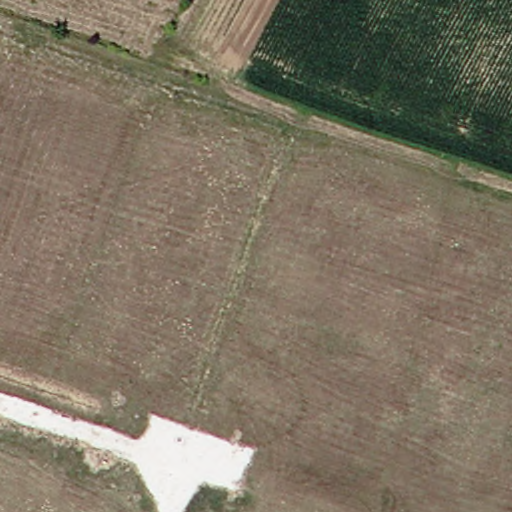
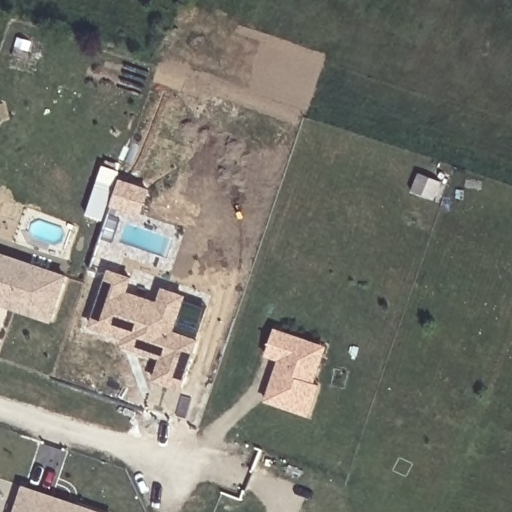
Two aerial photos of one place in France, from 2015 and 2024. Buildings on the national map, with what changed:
new [(141,216),(111,206),(105,220),(87,212),(105,164),(124,171),(121,177),(150,187),(141,216)]
new [(26,265),(65,278),(50,320),(0,302),(0,255),(26,265)]
new [(124,347),(125,340),(90,327),(109,276),(129,283),(125,292),(158,302),(161,292),(202,306),(191,336),(196,338),(179,388),(153,380),(160,360),(124,347)]
new [(265,354),(275,329),(309,342),(325,348),(319,363),(311,385),(317,386),(306,415),(265,400),(280,360),(265,354)]
new [(51,496),(76,505),(96,512),(14,512),(23,486),(51,496)]

